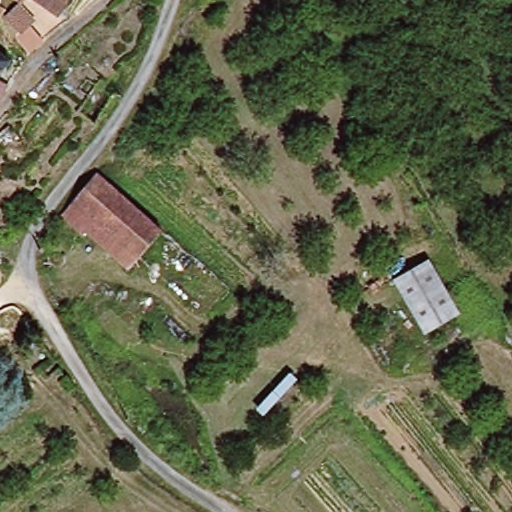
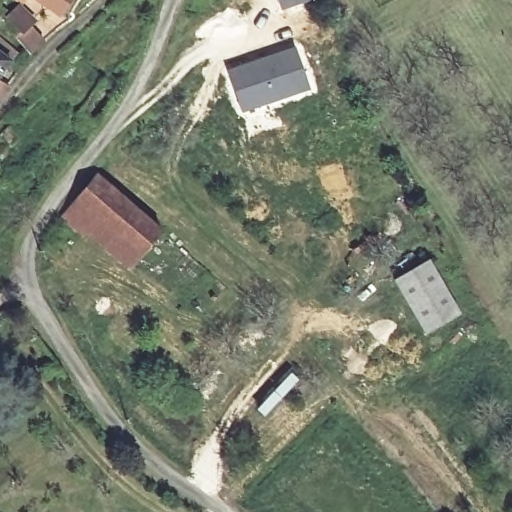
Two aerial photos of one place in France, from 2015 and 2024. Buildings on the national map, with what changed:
unchanged [(58,9),(45,0),(66,0),(58,9)]
unchanged [(23,19),(22,21),(40,36),(28,49),(11,35),(12,33),(0,23),(0,8),(3,4),(23,19)]
unchanged [(83,25),(95,37),(80,50),(68,38),(83,25)]
new [(310,91),(240,115),(227,73),(295,48),(310,91)]
unchanged [(0,82),(0,51),(15,62),(0,82)]
unchanged [(86,109),(112,84),(126,100),(102,125),(86,109)]
unchanged [(12,106),(24,96),(35,108),(23,118),(12,106)]
unchanged [(130,267),(92,230),(87,235),(60,210),(97,173),(165,232),(130,267)]
unchanged [(460,314),(425,333),(397,283),(431,264),(460,314)]

